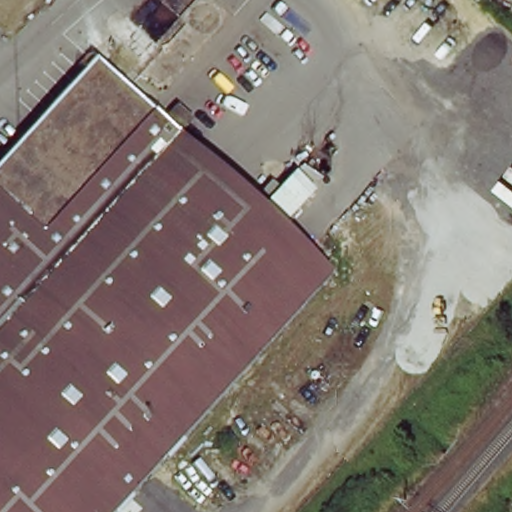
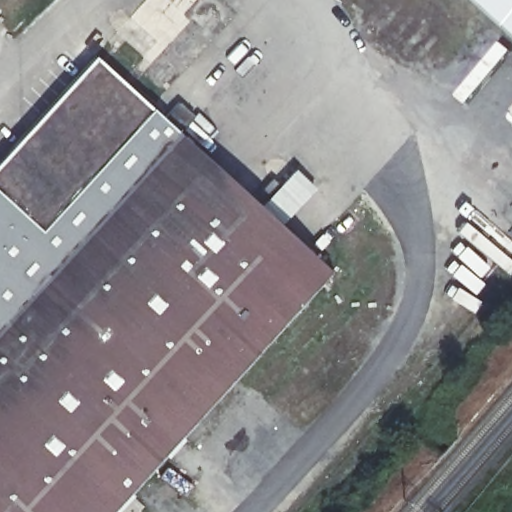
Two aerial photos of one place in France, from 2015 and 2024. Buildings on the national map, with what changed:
new [(477,0),(512,0),(512,32),(477,0)]
unchanged [(322,282),(125,512),(0,512),(0,146),(69,68),(322,282)]
unchanged [(292,172),(311,185),(285,218),(265,206),(292,172)]

